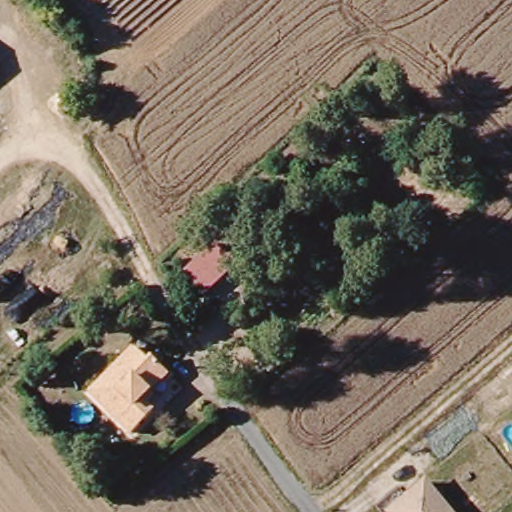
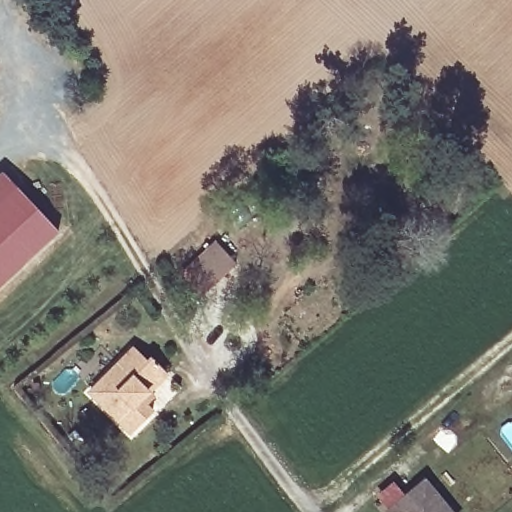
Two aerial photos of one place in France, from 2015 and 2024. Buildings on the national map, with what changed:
new [(0,289),(0,172),(1,172),(59,233),(0,289)]
unchanged [(198,264),(225,228),(250,247),(222,283),(198,264)]
unchanged [(149,408),(155,414),(135,436),(92,397),(135,351),(150,364),(153,359),(167,373),(148,392),(150,394),(156,399),(149,408)]
unchanged [(453,512),(385,512),(426,479),(453,512)]

